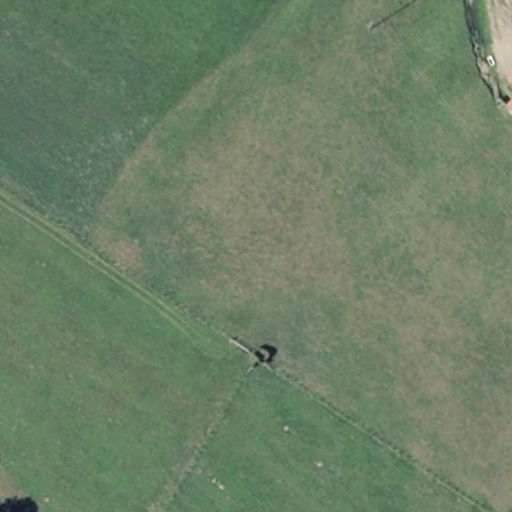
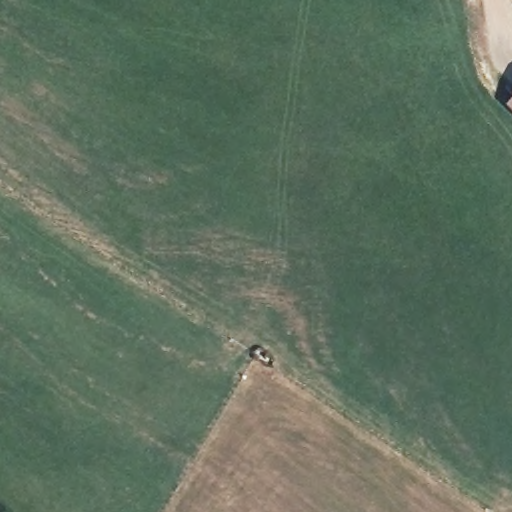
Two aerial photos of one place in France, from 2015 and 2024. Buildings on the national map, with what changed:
unchanged [(506,106),(512,100),(512,113),(506,106)]

